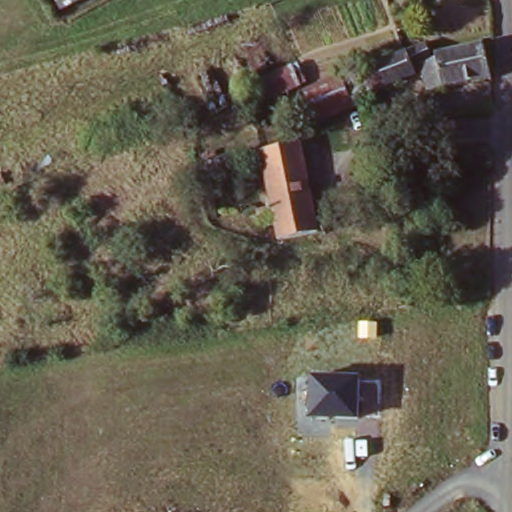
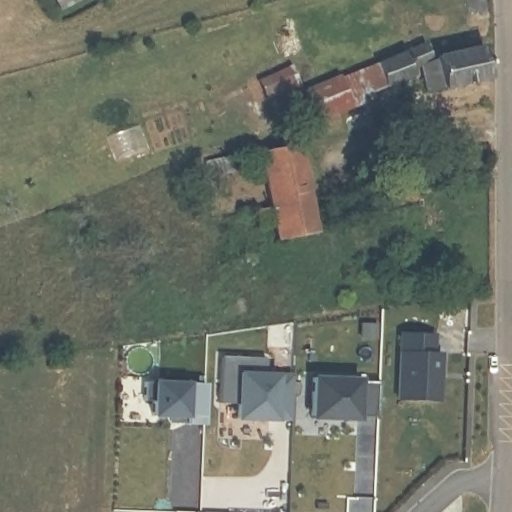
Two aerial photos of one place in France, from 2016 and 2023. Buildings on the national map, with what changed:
unchanged [(56,0),(85,0),(62,12),(56,0)]
unchanged [(433,91),(428,76),(377,92),(366,59),(419,42),(424,56),(486,38),(494,65),(495,71),(433,91)]
unchanged [(305,64),(312,88),(279,96),(272,73),(305,64)]
unchanged [(356,74),(363,105),(325,116),(318,85),(356,74)]
unchanged [(263,174),(259,155),(296,146),(301,165),(316,232),(277,241),(273,225),(258,229),(253,214),(268,210),(263,174)]
new [(432,335),(432,353),(439,353),(437,401),(399,401),(401,333),(432,335)]
new [(289,420),(234,419),(235,402),(218,402),(220,355),(265,357),(264,372),(291,372),(289,420)]
unchanged [(362,383),(376,383),(375,417),(362,417),(362,422),(308,420),(310,376),(362,377),(362,383)]
new [(202,384),(201,424),(183,423),(183,417),(151,416),(151,401),(141,401),(142,382),(202,384)]

